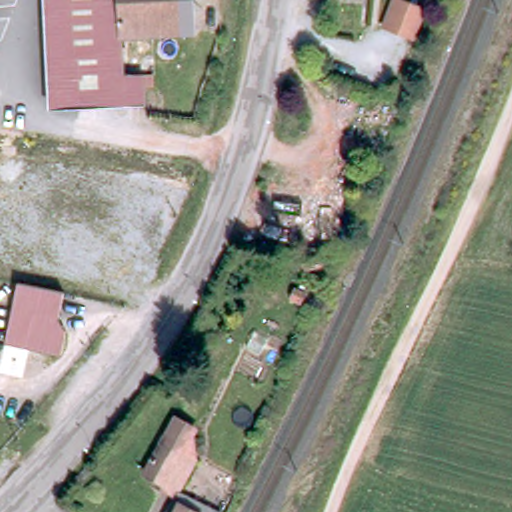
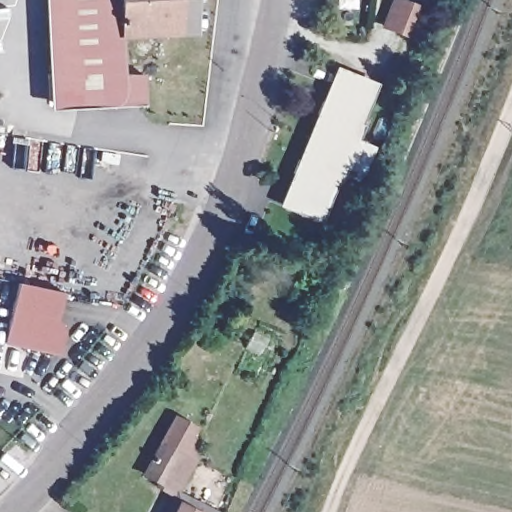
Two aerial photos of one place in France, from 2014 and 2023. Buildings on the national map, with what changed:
unchanged [(108,29),(104,29),(100,29),(100,44),(102,44),(109,44),(112,78),(131,77),(133,108),(89,111),(51,114),(43,0),(170,0),(172,19),(180,18),(180,34),(109,39),(108,29)]
unchanged [(412,40),(382,25),(392,0),(402,0),(425,9),(412,40)]
new [(377,83),(360,123),(365,125),(358,140),(374,146),(362,174),(346,168),(340,183),(336,181),(319,223),(277,206),(335,65),(377,83)]
unchanged [(50,315),(57,327),(53,351),(0,341),(0,322),(8,279),(54,288),(55,288),(50,315)]
unchanged [(160,496),(142,487),(149,470),(162,442),(172,423),(195,435),(185,454),(172,481),(225,506),(222,512),(152,512),(160,496)]

